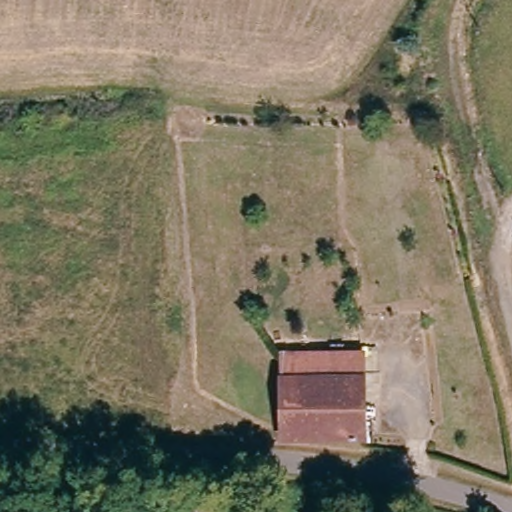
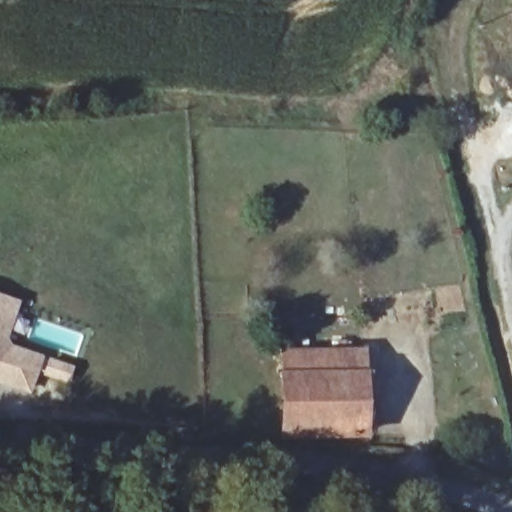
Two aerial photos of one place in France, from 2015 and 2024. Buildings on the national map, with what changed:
new [(19,301),(7,337),(11,344),(43,354),(30,392),(0,383),(0,294),(19,301)]
unchanged [(362,433),(285,432),(281,355),(358,355),(362,433)]

